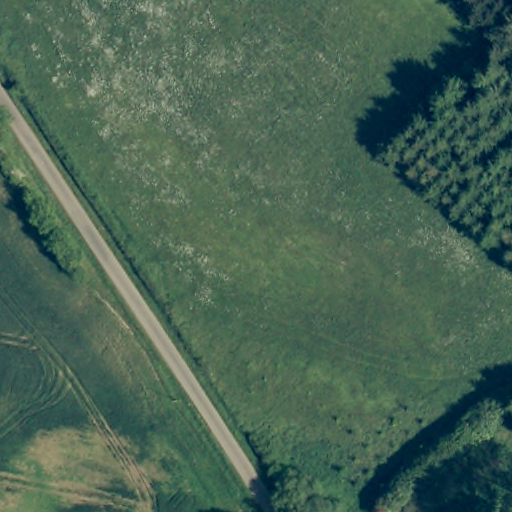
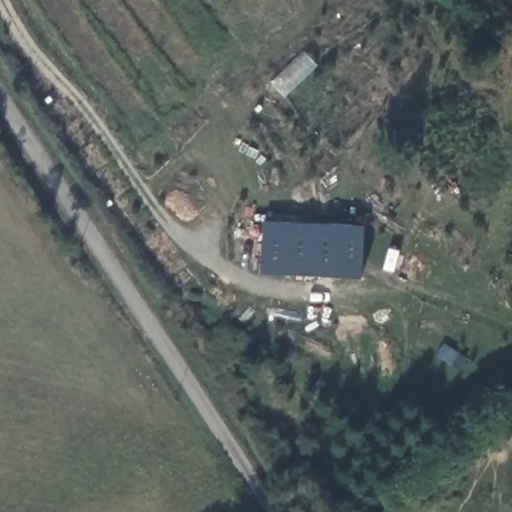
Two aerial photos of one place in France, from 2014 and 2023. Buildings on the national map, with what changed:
new [(361,276),(259,273),(264,220),(366,225),(361,276)]

